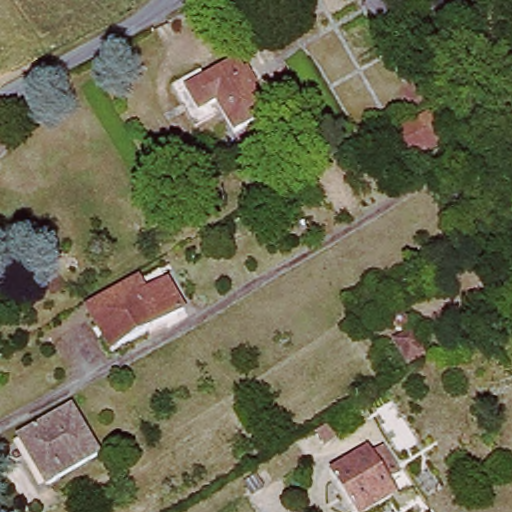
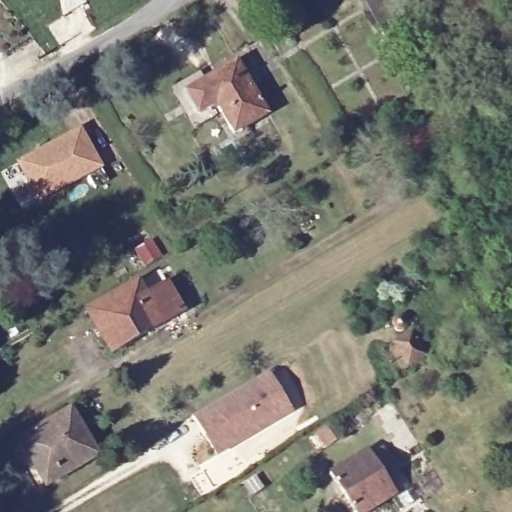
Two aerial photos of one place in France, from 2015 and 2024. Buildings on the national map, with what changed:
unchanged [(383,0),(403,35),(387,43),(364,0),(383,0)]
unchanged [(229,114),(203,129),(178,87),(206,71),(211,81),(243,63),(274,116),(241,134),(229,114)]
unchanged [(440,148),(406,169),(392,144),(425,124),(440,148)]
new [(82,132),(103,169),(41,204),(20,166),(82,132)]
unchanged [(185,317),(114,356),(90,314),(161,274),(185,317)]
unchanged [(392,322),(395,320),(399,321),(401,323),(402,325),(402,328),(402,330),(400,332),(398,333),(395,333),(393,333),(391,331),(390,329),(389,326),(390,324),(392,322)]
unchanged [(390,344),(405,334),(421,358),(405,368),(390,344)]
new [(205,440),(193,420),(271,374),(295,413),(244,444),(217,460),(205,440)]
unchanged [(46,488),(18,440),(71,410),(97,456),(46,488)]
unchanged [(394,498),(371,512),(349,512),(328,478),(365,453),(394,498)]

